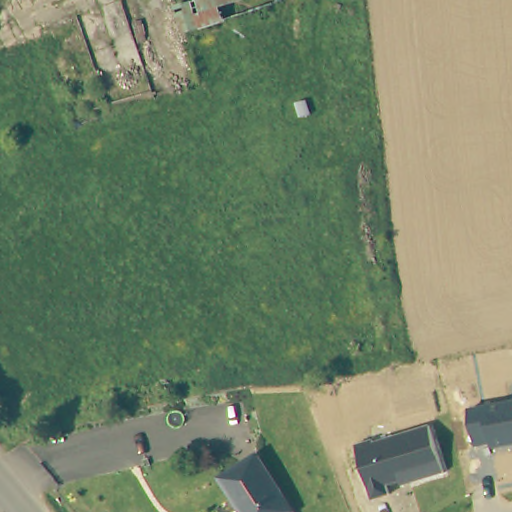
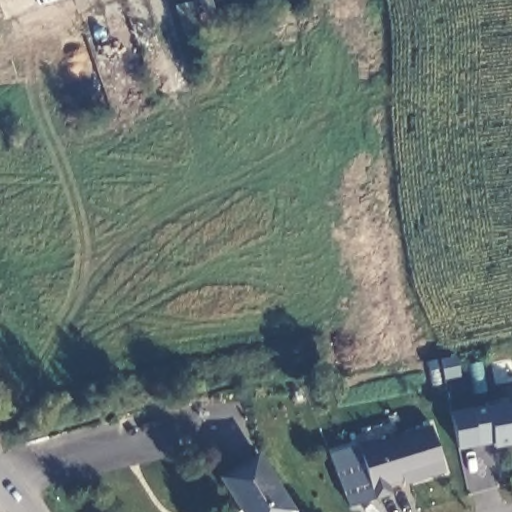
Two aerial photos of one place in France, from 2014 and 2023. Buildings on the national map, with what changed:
unchanged [(201,29),(183,32),(175,6),(192,2),(192,0),(273,0),(274,4),(201,29)]
unchanged [(494,448),(493,445),(476,446),(468,409),(512,401),(512,444),(494,448)]
unchanged [(390,485),(394,494),(374,500),(358,448),(432,426),(446,470),(390,485)]
unchanged [(221,477),(257,454),(294,511),(293,512),(236,512),(241,509),(221,477)]

